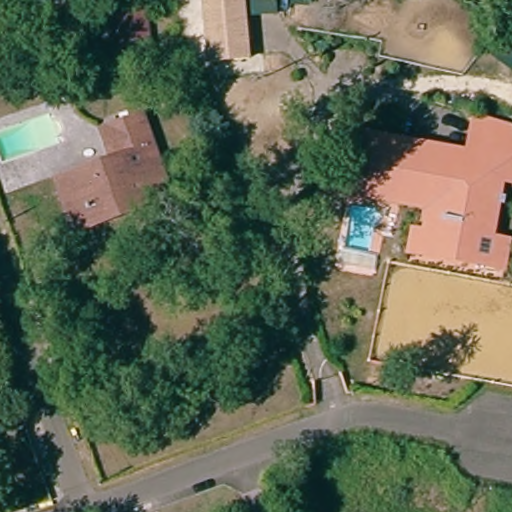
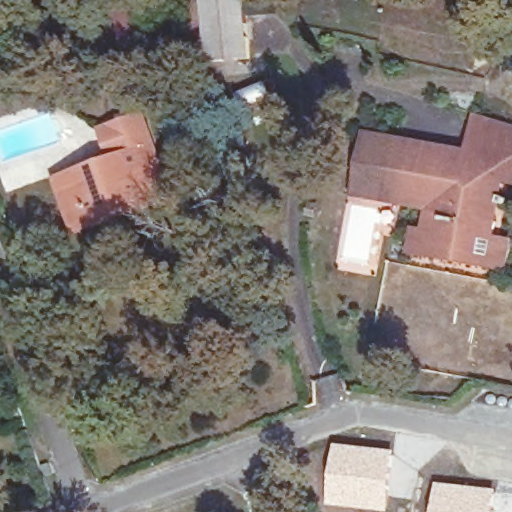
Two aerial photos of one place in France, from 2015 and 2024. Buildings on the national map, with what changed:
unchanged [(209,66),(204,0),(245,0),(250,61),(209,66)]
unchanged [(152,58),(123,62),(117,6),(147,2),(152,58)]
unchanged [(441,155),(443,150),(377,137),(371,171),(390,175),(387,191),(435,200),(427,242),(470,250),(473,234),(512,240),(512,243),(507,268),(409,249),(412,232),(423,234),(428,205),(358,191),(371,126),(464,144),(470,112),(478,116),(469,161),(441,155)]
unchanged [(65,179),(102,165),(103,170),(118,166),(116,160),(126,156),(117,127),(148,116),(165,160),(166,165),(145,172),(151,197),(81,222),(65,179)]
unchanged [(512,169),(486,165),(477,216),(473,234),(470,250),(427,242),(435,200),(387,191),(390,175),(371,171),(377,137),(443,150),(441,155),(469,161),(478,116),(512,128),(512,169)]
unchanged [(172,199),(85,230),(81,222),(151,197),(145,172),(166,165),(172,181),(166,182),(172,199)]
unchanged [(495,220),(477,216),(486,165),(512,169),(512,183),(502,181),(495,220)]
new [(335,443),(394,451),(387,512),(380,512),(327,505),(335,443)]
new [(436,482),(495,488),(493,512),(433,512),(436,482)]

